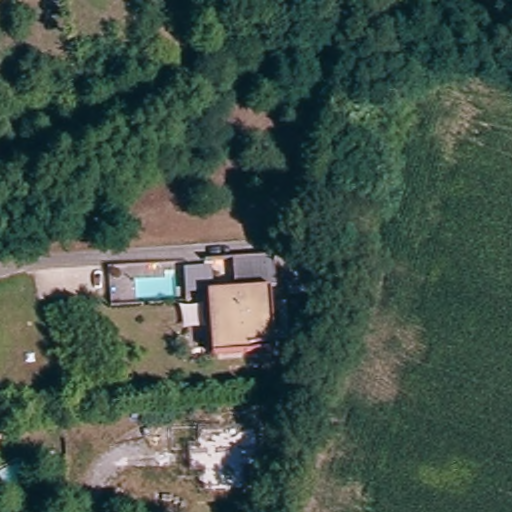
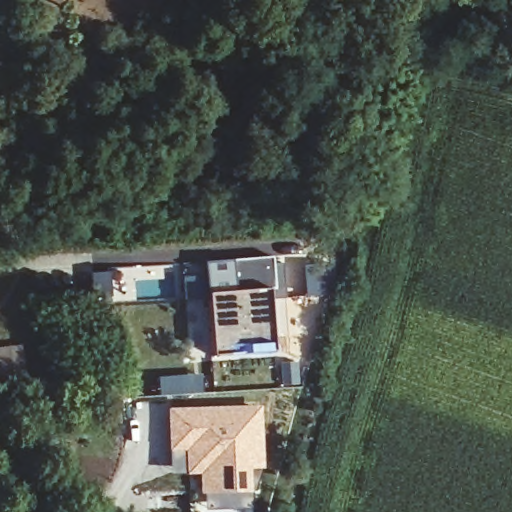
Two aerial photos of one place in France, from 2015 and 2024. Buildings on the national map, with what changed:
unchanged [(276,258),(279,291),(272,291),(277,353),(214,356),(210,294),(238,292),(237,260),(276,258)]
unchanged [(191,265),(194,306),(178,306),(176,277),(138,281),(139,309),(114,310),(110,266),(191,265)]
new [(21,345),(25,378),(0,382),(0,348),(21,345)]
new [(202,374),(203,394),(157,397),(156,376),(202,374)]
new [(262,404),(263,470),(249,470),(249,493),(197,495),(196,475),(170,475),(165,408),(262,404)]

